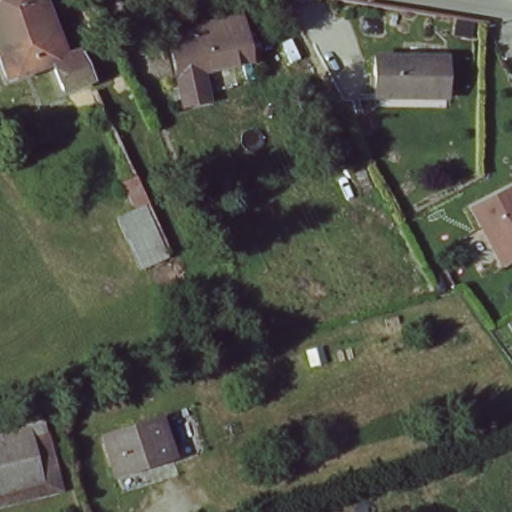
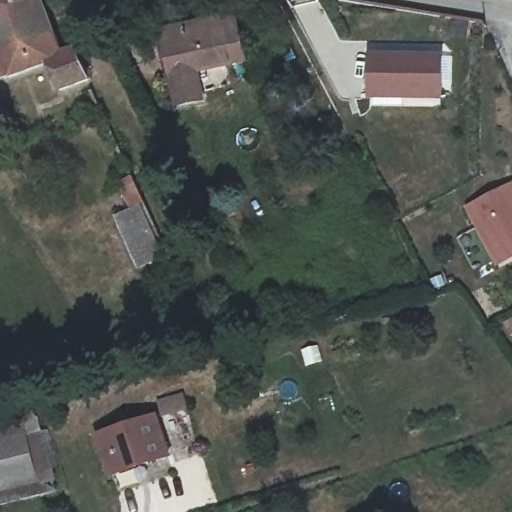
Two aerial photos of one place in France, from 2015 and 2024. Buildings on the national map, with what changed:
unchanged [(88,77),(59,90),(48,62),(6,77),(0,56),(0,0),(37,0),(61,52),(74,46),(88,77)]
unchanged [(160,30),(236,13),(247,59),(198,70),(203,100),(176,105),(160,30)]
unchanged [(368,54),(436,57),(435,99),(367,96),(368,54)]
unchanged [(143,273),(118,217),(137,207),(126,184),(139,176),(150,202),(143,206),(168,261),(143,273)]
unchanged [(512,183),(512,258),(497,266),(468,207),(512,183)]
unchanged [(98,433),(154,415),(169,453),(111,471),(98,433)]
unchanged [(15,440),(26,485),(0,491),(0,423),(24,418),(28,437),(15,440)]
unchanged [(0,505),(0,491),(26,485),(15,440),(28,437),(43,495),(0,505)]

